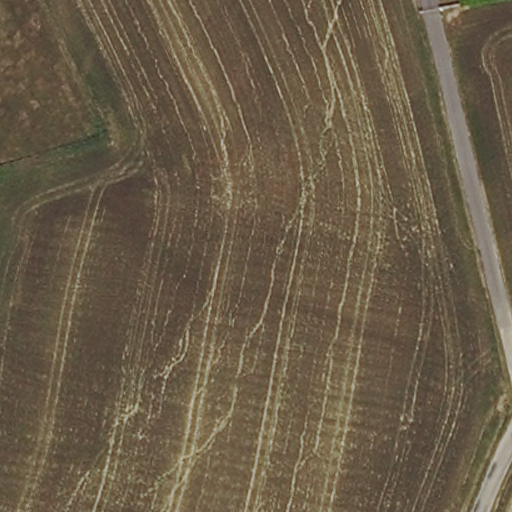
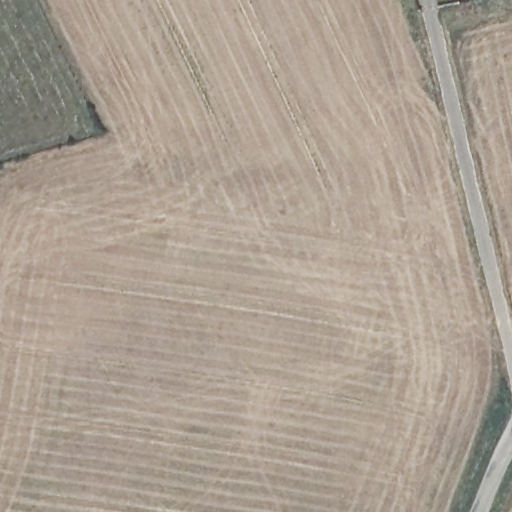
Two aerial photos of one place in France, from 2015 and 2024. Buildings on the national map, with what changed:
[]

